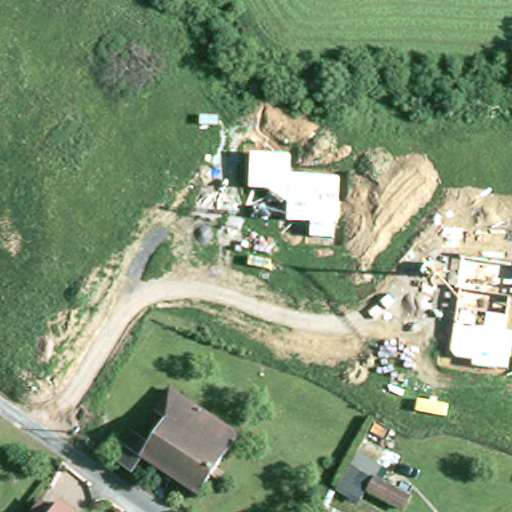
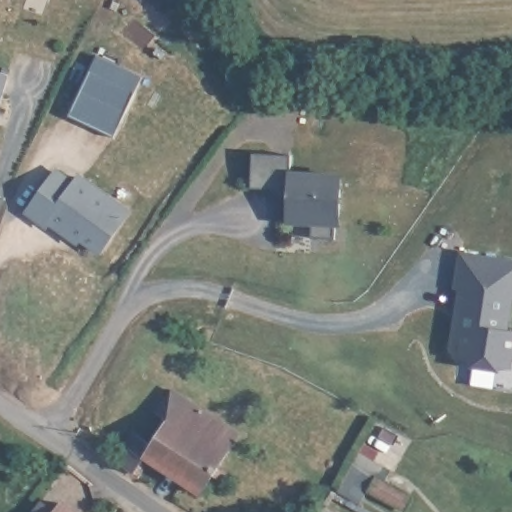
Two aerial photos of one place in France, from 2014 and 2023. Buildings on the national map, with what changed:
new [(135,91),(115,135),(70,114),(91,70),(135,91)]
new [(7,74),(0,102),(0,72),(7,74)]
unchanged [(291,155),(290,174),(340,177),(335,238),(310,235),(310,222),(285,219),(285,202),(269,190),(250,189),(252,153),(291,155)]
new [(75,178),(79,173),(130,210),(100,254),(80,241),(78,245),(50,226),(47,229),(25,213),(57,164),(75,178)]
unchanged [(512,301),(510,300),(506,330),(512,332),(506,372),(472,368),(472,361),(453,357),(449,351),(457,293),(453,292),(461,254),(512,265),(512,301)]
unchanged [(110,453),(130,427),(145,439),(162,417),(150,408),(165,388),(167,390),(230,438),(207,467),(216,473),(207,484),(199,477),(187,492),(137,454),(127,467),(110,453)]
unchanged [(391,474),(385,483),(410,496),(402,509),(363,492),(355,505),(332,489),(360,452),(391,474)]
unchanged [(60,509),(64,512),(58,512),(60,509)]

